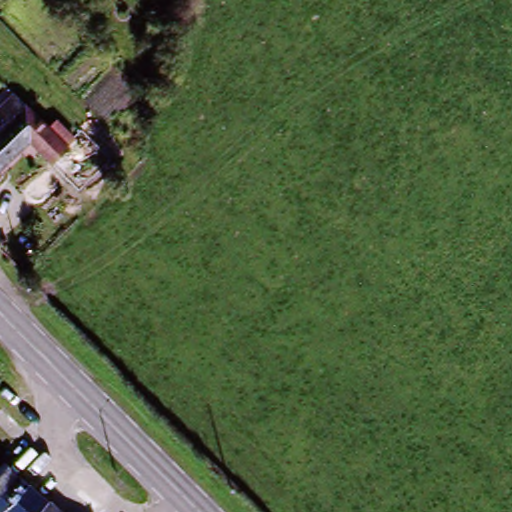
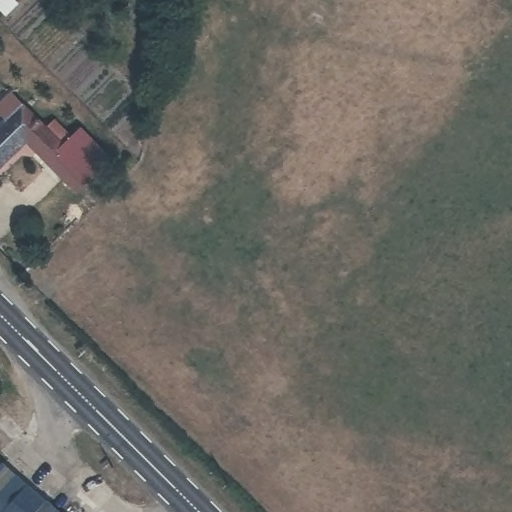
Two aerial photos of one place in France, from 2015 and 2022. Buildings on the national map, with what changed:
unchanged [(21,104),(70,147),(46,170),(29,150),(0,178),(0,126),(21,104)]
new [(70,147),(48,127),(56,119),(73,135),(82,126),(113,160),(77,195),(50,166),(70,147)]
unchanged [(12,492),(26,480),(57,512),(0,512),(0,479),(12,492)]

